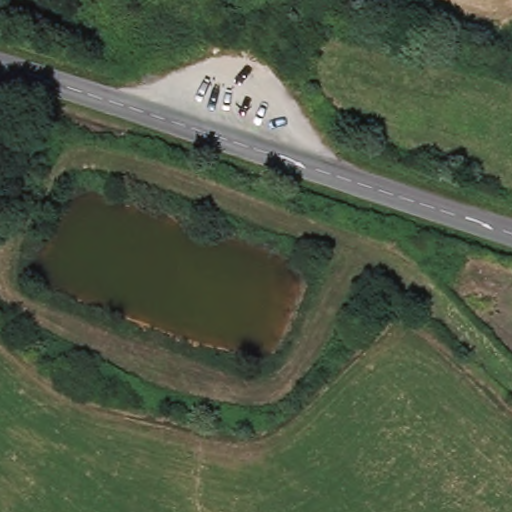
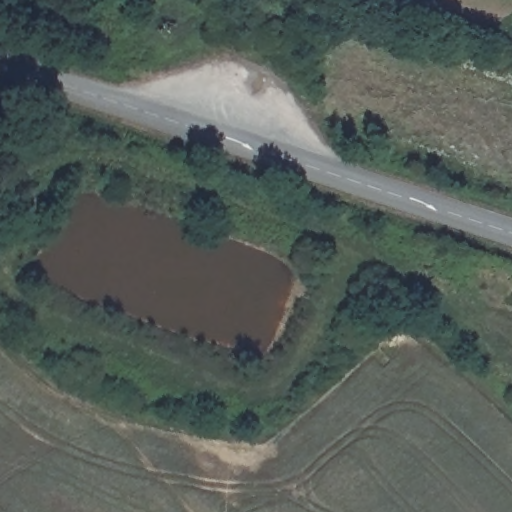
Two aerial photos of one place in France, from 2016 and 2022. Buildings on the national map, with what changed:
[]

